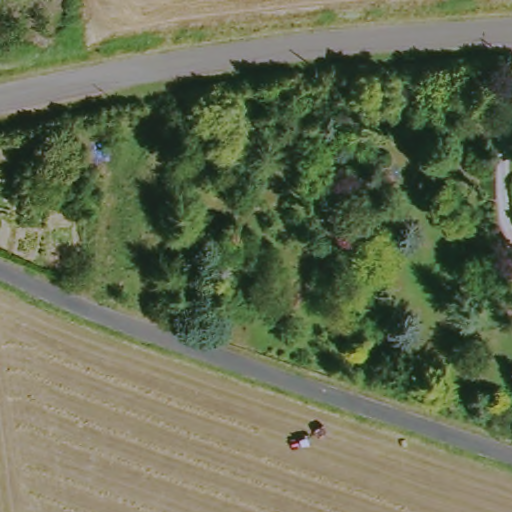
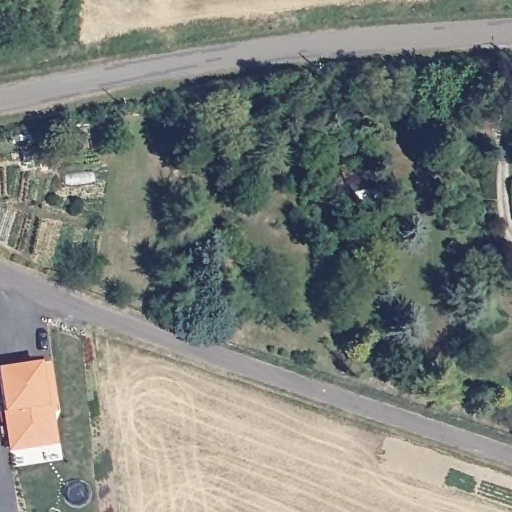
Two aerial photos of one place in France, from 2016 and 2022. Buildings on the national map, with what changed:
new [(4,413),(0,383),(0,367),(40,362),(45,401),(55,400),(57,412),(52,413),(57,444),(10,450),(4,413)]

